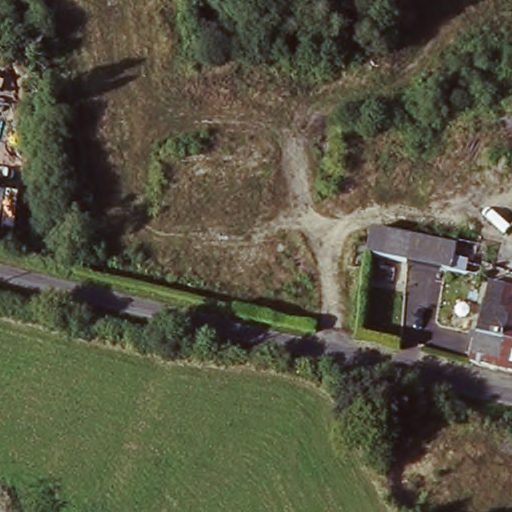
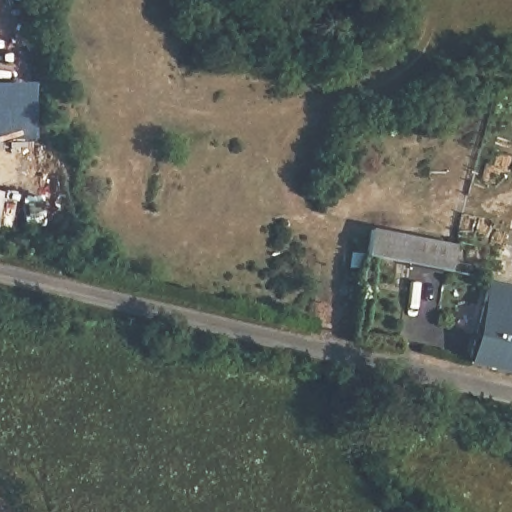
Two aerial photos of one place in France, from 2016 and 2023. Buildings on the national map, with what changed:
new [(35,140),(0,141),(0,83),(36,82),(35,140)]
unchanged [(0,226),(0,190),(6,192),(0,226)]
unchanged [(371,226),(454,246),(449,272),(366,252),(371,226)]
unchanged [(484,248),(477,278),(450,272),(456,242),(484,248)]
unchanged [(486,278),(512,284),(512,368),(469,358),(486,278)]

